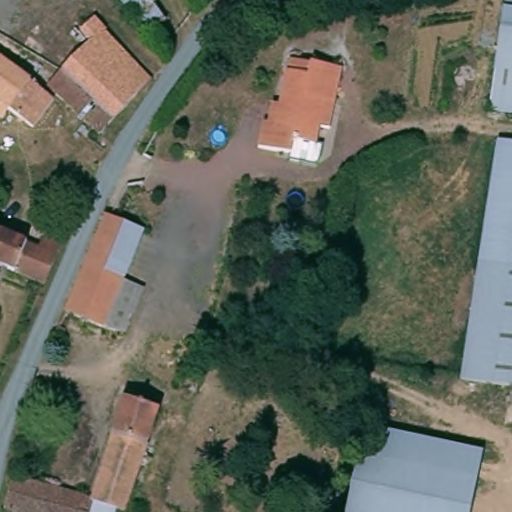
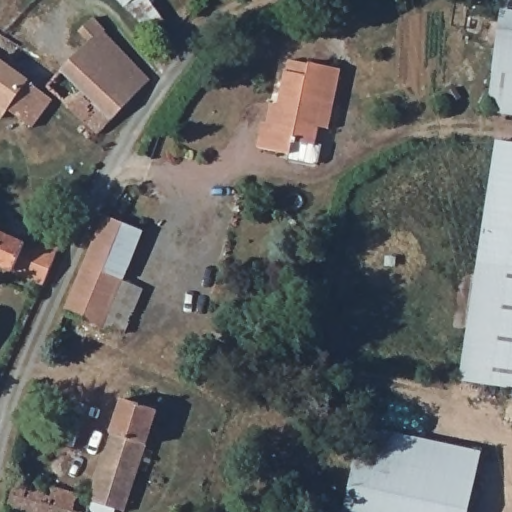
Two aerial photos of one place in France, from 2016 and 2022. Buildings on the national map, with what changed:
unchanged [(118,0),(153,0),(169,23),(146,39),(118,0)]
unchanged [(507,0),(512,0),(512,111),(488,107),(507,0)]
unchanged [(63,64),(88,40),(77,29),(91,16),(92,16),(148,79),(109,119),(58,69),(63,64)]
unchanged [(320,128),(315,146),(296,141),(293,155),(259,148),(265,122),(269,123),(274,102),(280,104),(287,73),(288,73),(292,59),(312,63),(313,60),(348,69),(339,107),(334,130),(320,128)]
unchanged [(6,109),(0,119),(0,61),(21,75),(26,80),(48,95),(29,123),(10,110),(6,109)]
unchanged [(58,69),(109,119),(96,131),(73,109),(44,84),(58,69)]
unchanged [(512,387),(508,386),(461,377),(504,141),(512,143),(512,387)]
unchanged [(140,308),(138,307),(134,321),(116,317),(77,301),(116,202),(155,219),(135,267),(154,274),(140,308)]
unchanged [(2,235),(41,253),(47,238),(66,243),(48,287),(0,267),(0,234),(2,235)]
unchanged [(161,411),(127,509),(126,510),(95,497),(127,398),(161,411)]
unchanged [(482,451),(470,512),(348,512),(365,426),(482,451)]
unchanged [(12,474),(13,471),(95,497),(92,512),(12,512),(8,511),(16,476),(12,474)]

